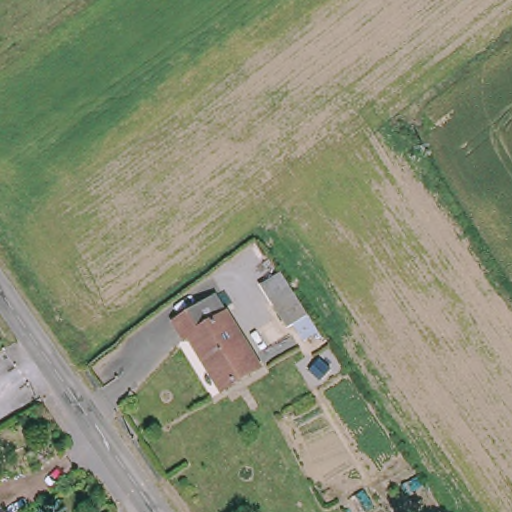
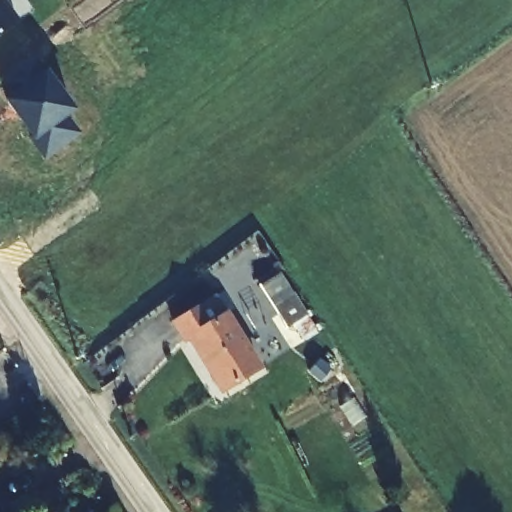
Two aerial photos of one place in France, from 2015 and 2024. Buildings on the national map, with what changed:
new [(0,0),(7,0),(20,19),(0,34),(0,0)]
new [(26,137),(30,135),(3,99),(48,67),(77,110),(68,117),(80,134),(45,160),(26,137)]
unchanged [(312,340),(300,323),(293,328),(275,301),(292,290),(321,334),(312,340)]
unchanged [(190,341),(182,346),(167,325),(209,295),(264,367),(230,392),(195,347),(190,341)]
unchanged [(42,496),(30,480),(50,467),(60,485),(42,496)]

